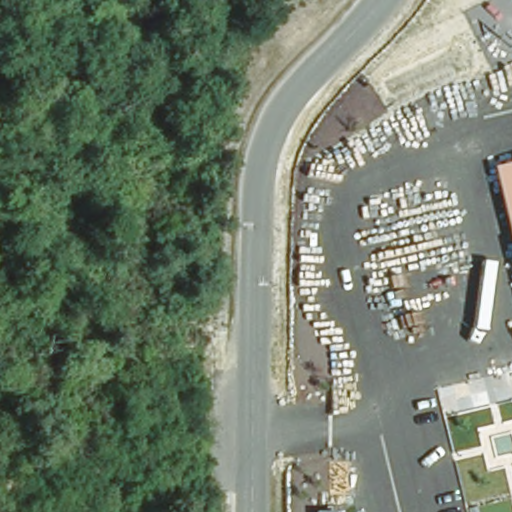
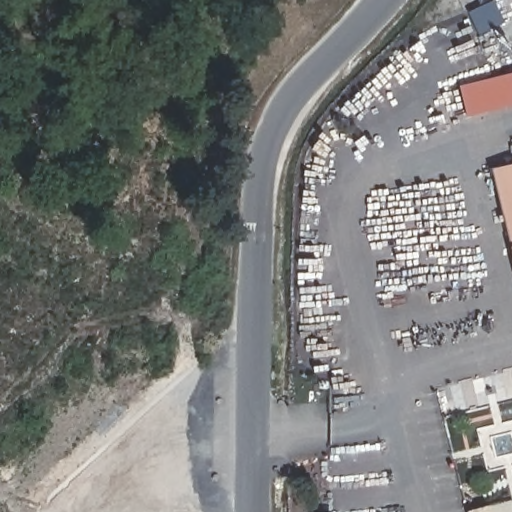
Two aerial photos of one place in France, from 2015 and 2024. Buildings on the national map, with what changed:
new [(458,85),(512,72),(512,106),(466,117),(458,85)]
unchanged [(512,163),(512,247),(493,167),(512,163)]

